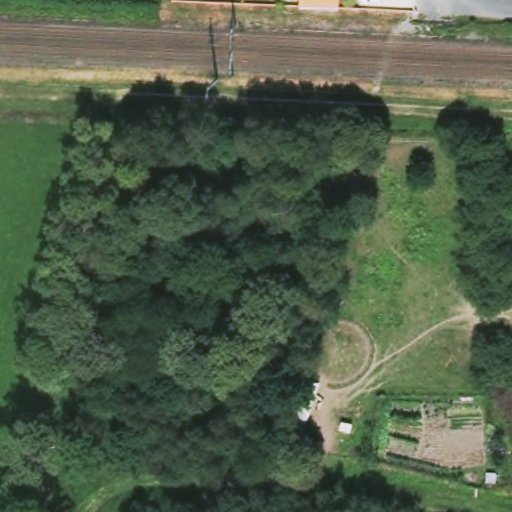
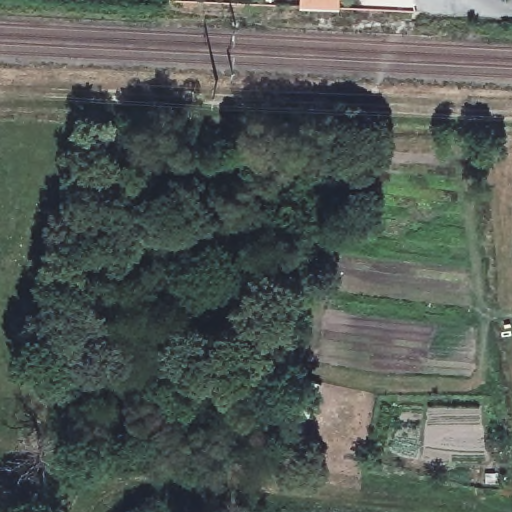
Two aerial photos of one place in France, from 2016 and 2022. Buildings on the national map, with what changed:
unchanged [(303,6),(303,0),(339,0),(338,9),(303,6)]

